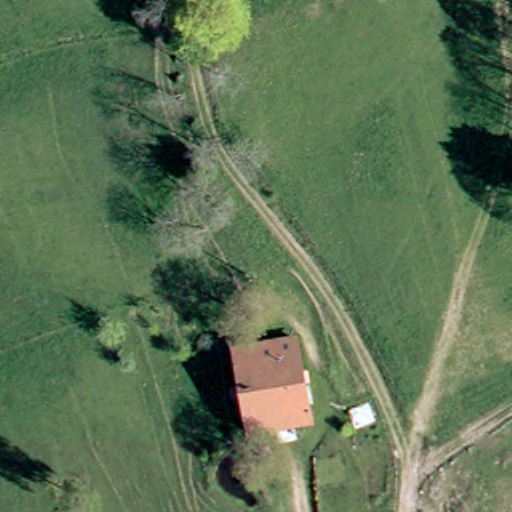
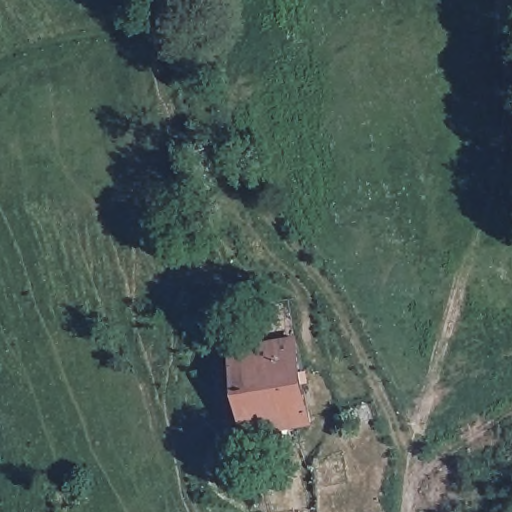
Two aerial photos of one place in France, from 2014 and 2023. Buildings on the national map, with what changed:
unchanged [(276,432),(247,436),(237,353),(297,341),(310,425),(276,432)]

